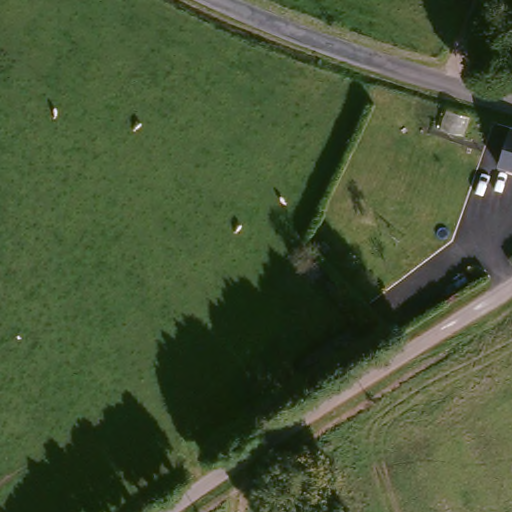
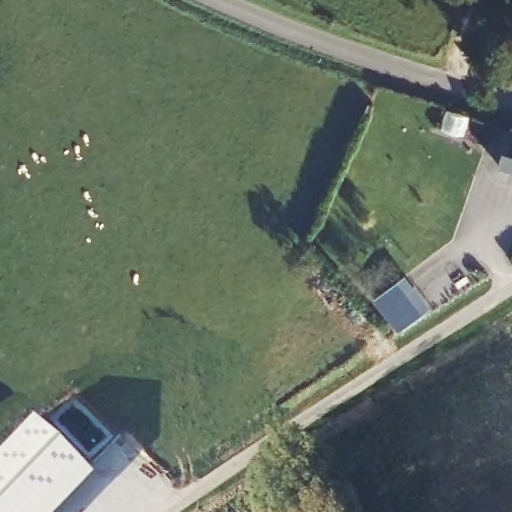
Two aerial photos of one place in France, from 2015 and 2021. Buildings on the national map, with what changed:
new [(432,306),(399,330),(373,297),(407,272),(432,306)]
new [(35,413),(75,452),(17,512),(0,512),(0,450),(35,413)]

